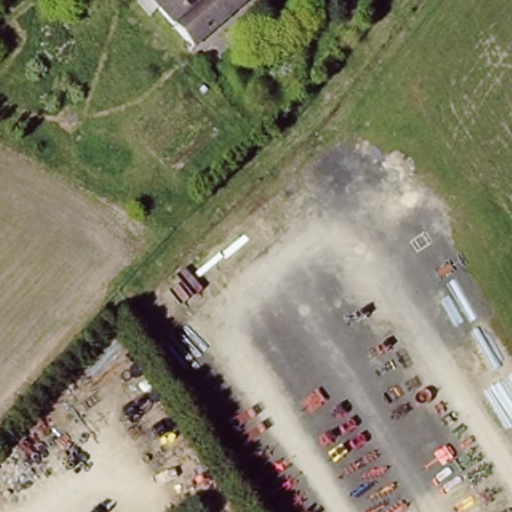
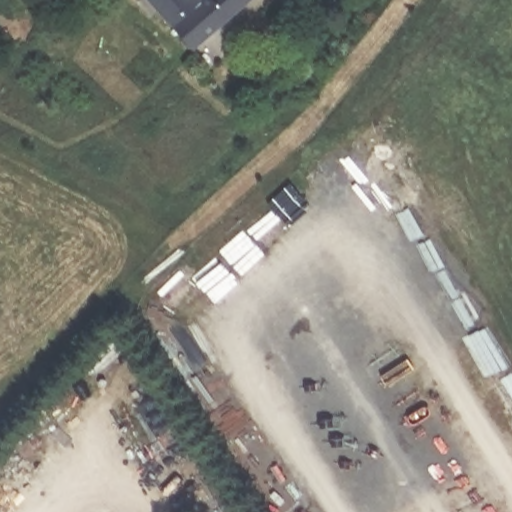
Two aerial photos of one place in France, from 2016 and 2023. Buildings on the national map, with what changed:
unchanged [(199,0),(245,0),(191,47),(150,0),(198,0),(199,0)]

